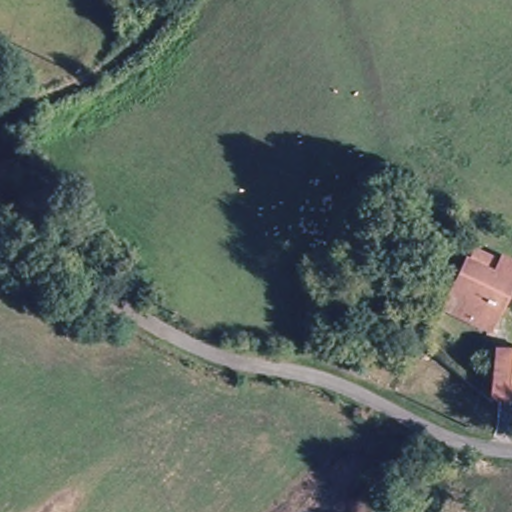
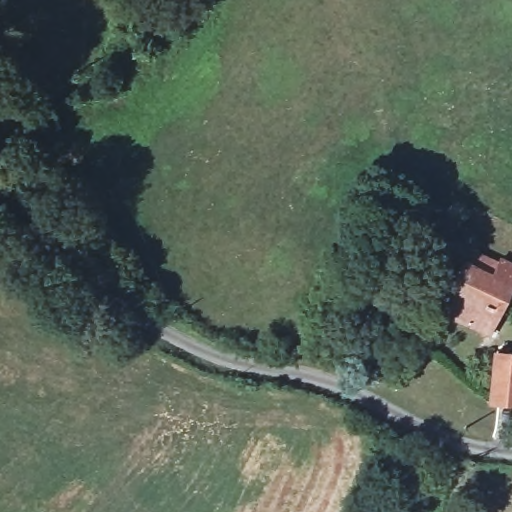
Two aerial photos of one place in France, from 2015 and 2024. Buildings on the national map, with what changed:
unchanged [(486,261),(490,254),(512,265),(512,282),(488,337),(438,311),(469,252),(486,261)]
unchanged [(512,356),(512,397),(495,398),(493,358),(512,356)]

